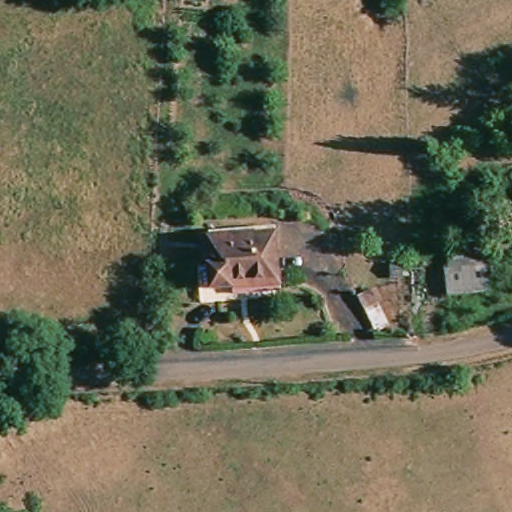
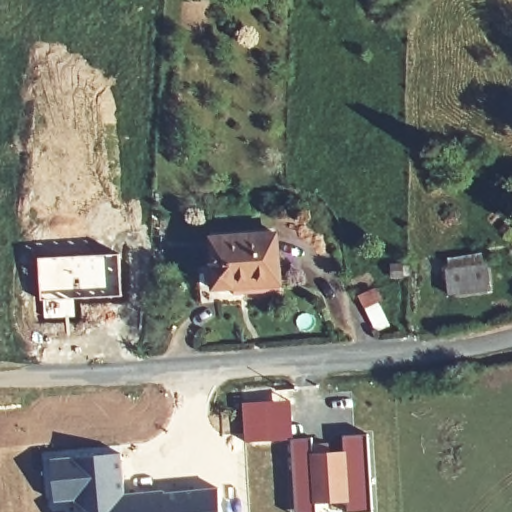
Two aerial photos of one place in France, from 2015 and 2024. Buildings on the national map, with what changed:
unchanged [(235,288),(213,290),(212,266),(211,238),(277,234),(280,276),(281,285),(235,288)]
new [(121,252),(122,297),(75,300),(75,317),(42,318),(37,256),(121,252)]
unchanged [(485,286),(444,290),(442,265),(482,261),(485,286)]
new [(372,512),(349,512),(348,501),(316,503),(316,512),(296,512),(292,438),(311,437),(312,453),(345,451),(344,436),(367,435),(372,512)]
new [(121,453),(125,494),(163,490),(163,492),(219,488),(221,512),(76,512),(75,500),(55,501),(51,458),(121,453)]

